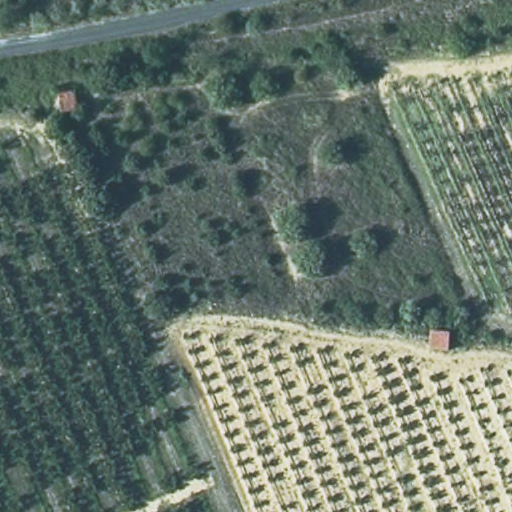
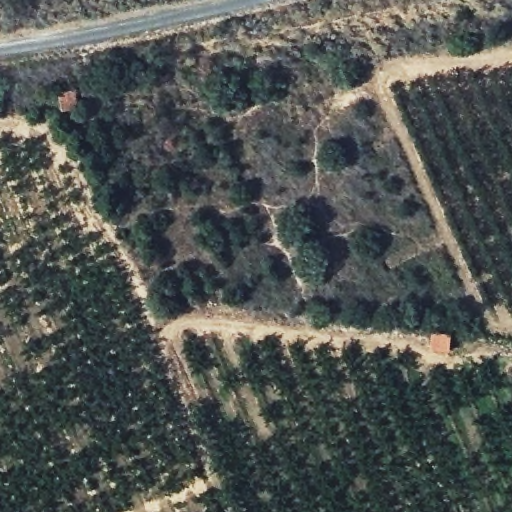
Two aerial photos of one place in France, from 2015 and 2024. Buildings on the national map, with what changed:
unchanged [(74,110),(57,111),(54,95),(70,91),(74,110)]
unchanged [(448,334),(448,351),(428,351),(430,328),(448,334)]

